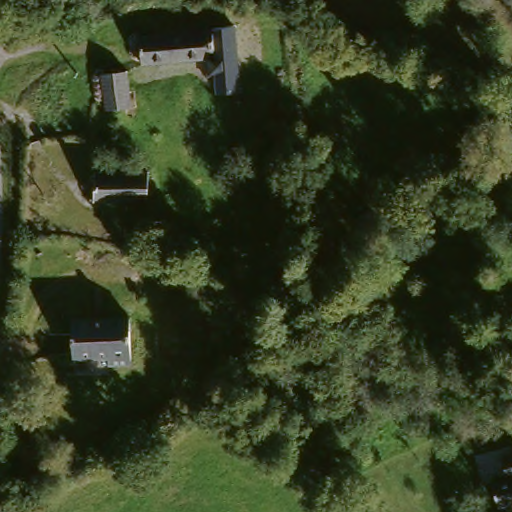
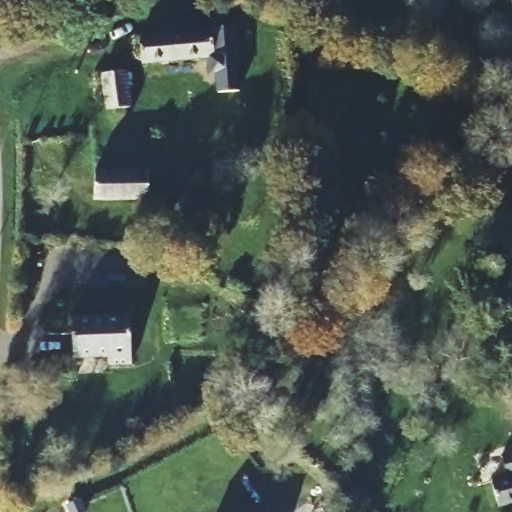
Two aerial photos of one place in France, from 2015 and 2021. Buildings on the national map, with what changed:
unchanged [(226,56),(226,60),(207,61),(207,64),(137,64),(137,34),(206,33),(206,36),(226,36),(226,41),(253,41),(253,56),(226,56)]
unchanged [(98,99),(94,76),(121,71),(127,111),(102,115),(101,116),(98,99)]
unchanged [(151,199),(94,201),(92,171),(109,170),(149,170),(151,199)]
unchanged [(103,369),(102,358),(68,359),(67,319),(124,318),(125,369),(103,369)]
unchanged [(499,481),(494,459),(512,454),(512,504),(499,507),(491,509),(484,484),(499,481)]

